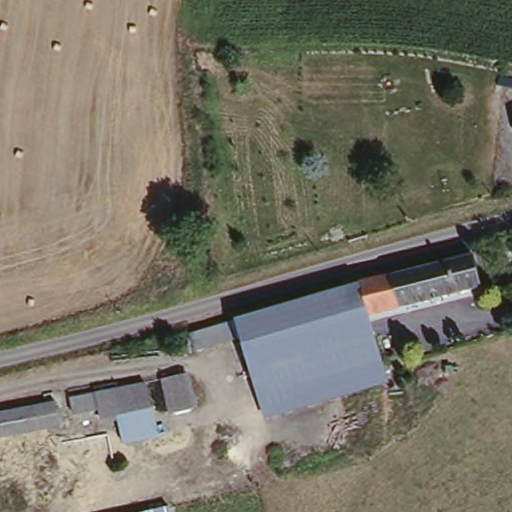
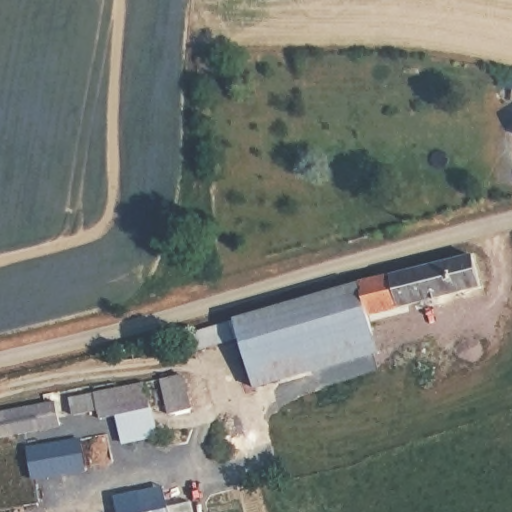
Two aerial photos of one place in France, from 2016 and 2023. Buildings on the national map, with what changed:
unchanged [(479,255),(489,288),(372,318),(364,285),(479,255)]
unchanged [(364,285),(372,318),(388,384),(265,416),(252,365),(301,351),(291,305),(364,285)]
unchanged [(192,330),(227,322),(291,305),(301,351),(252,365),(245,338),(232,342),(197,351),(192,330)]
unchanged [(186,377),(193,412),(165,417),(159,382),(186,377)]
unchanged [(124,440),(120,415),(82,422),(78,398),(152,383),(156,408),(161,432),(124,440)]
unchanged [(62,426),(0,437),(0,412),(58,401),(62,426)]
new [(85,441),(89,472),(33,477),(29,448),(85,441)]
demolished [(86,452),(90,473),(45,482),(41,461),(86,452)]
unchanged [(168,506),(170,512),(143,512),(168,506)]

